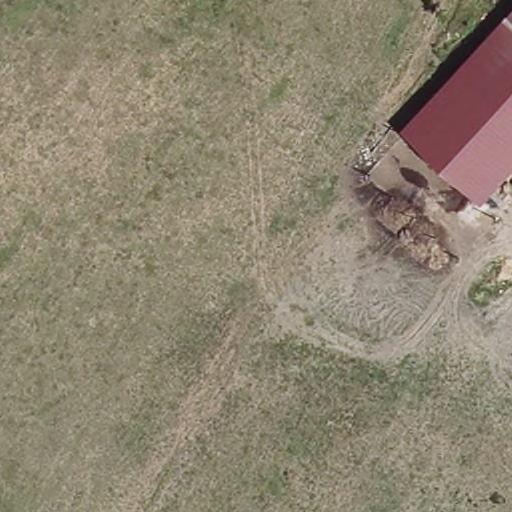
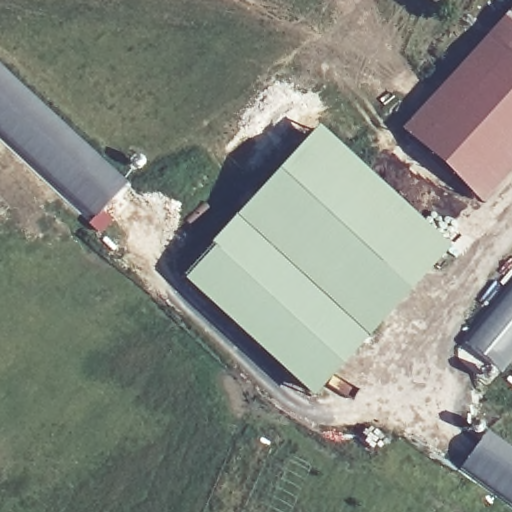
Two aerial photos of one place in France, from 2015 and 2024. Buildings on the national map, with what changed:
unchanged [(510,0),(512,0),(512,25),(498,13),(510,0)]
unchanged [(392,128),(498,13),(512,25),(512,160),(473,202),(392,128)]
new [(128,184),(101,211),(110,221),(98,234),(87,224),(0,142),(0,61),(128,184)]
new [(319,400),(182,286),(323,130),(453,251),(319,400)]
new [(512,362),(504,372),(462,340),(512,281),(512,362)]
new [(512,446),(512,505),(461,468),(490,430),(512,446)]

